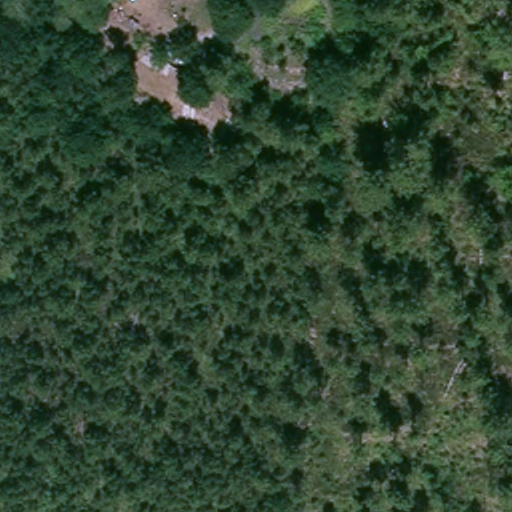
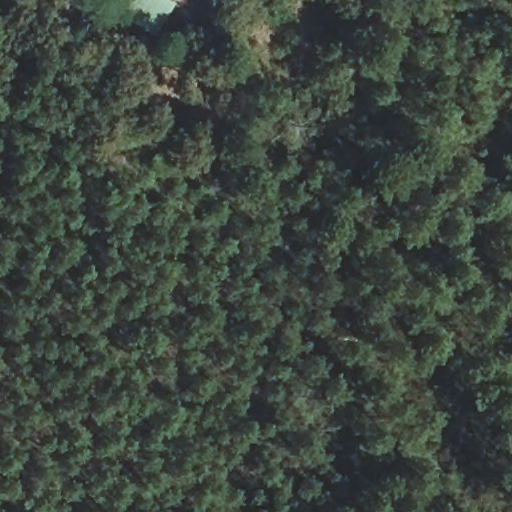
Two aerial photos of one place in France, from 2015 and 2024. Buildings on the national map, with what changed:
new [(121,0),(166,0),(174,5),(154,35),(115,11),(121,0)]

